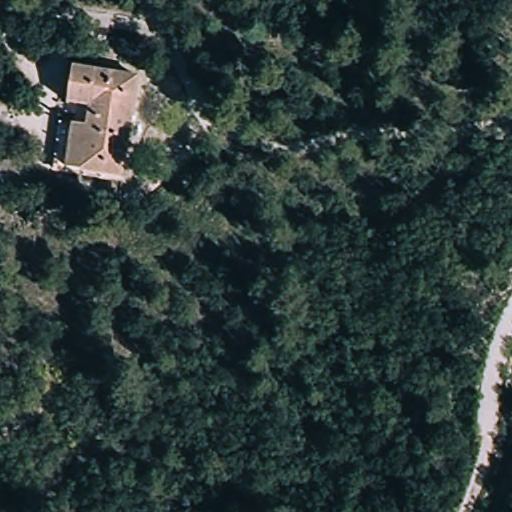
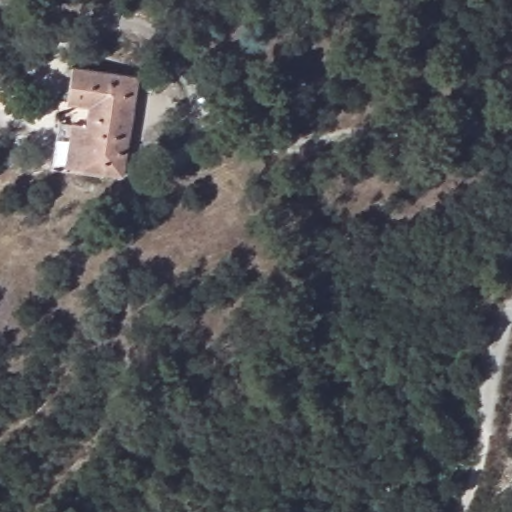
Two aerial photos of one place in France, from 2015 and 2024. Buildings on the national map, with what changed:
unchanged [(61,120),(75,121),(87,123),(90,104),(68,100),(74,65),(137,74),(122,174),(69,166),(55,164),(61,120)]

